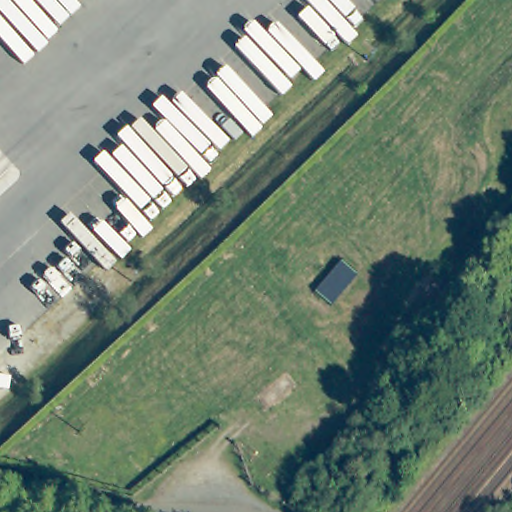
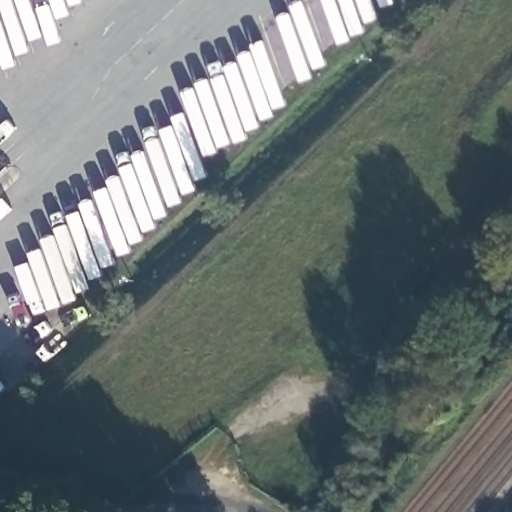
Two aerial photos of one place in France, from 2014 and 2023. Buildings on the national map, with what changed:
new [(342,263),(357,276),(332,306),(316,293),(342,263)]

